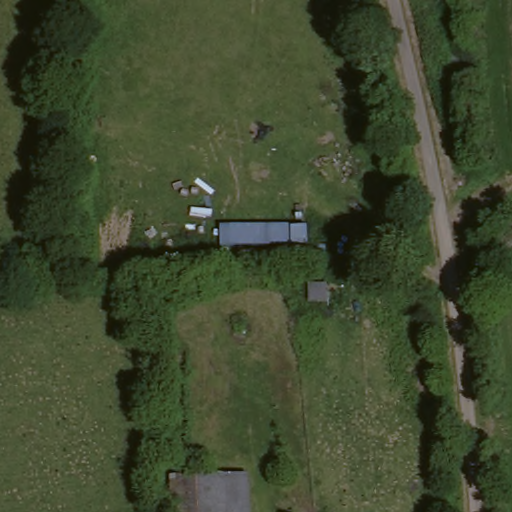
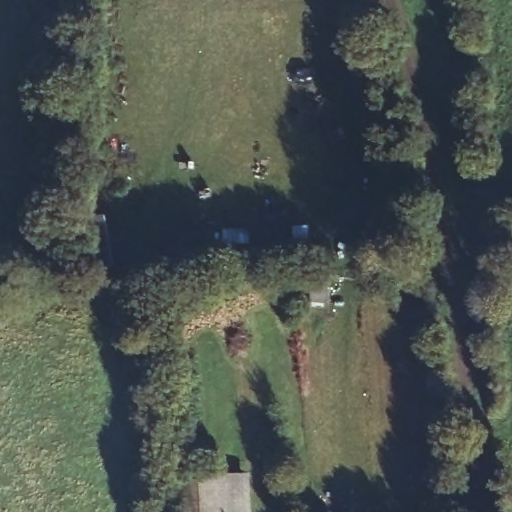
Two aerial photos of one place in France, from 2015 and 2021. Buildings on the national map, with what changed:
unchanged [(291,225),(291,245),(220,245),(221,226),(291,225)]
unchanged [(246,512),(174,512),(173,483),(244,483),(246,512)]

